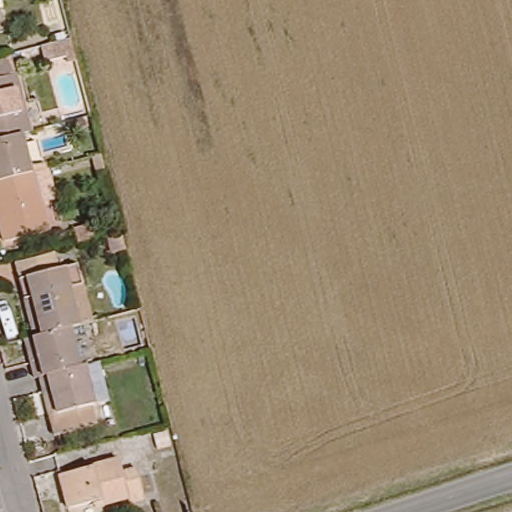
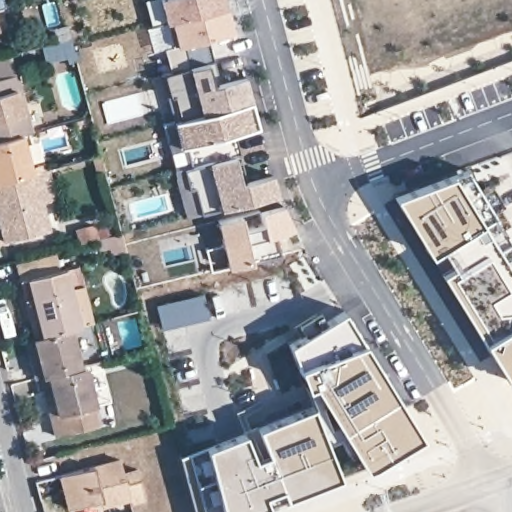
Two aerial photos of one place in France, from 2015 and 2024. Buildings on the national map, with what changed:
new [(224,7),(163,23),(157,0),(222,0),(224,7)]
new [(169,47),(163,23),(224,7),(231,32),(181,45),(186,67),(167,72),(161,49),(169,47)]
unchanged [(68,38),(72,53),(42,60),(38,45),(68,38)]
new [(186,67),(211,61),(216,83),(222,81),(242,76),(248,101),(177,120),(171,94),(166,95),(161,73),(167,72),(186,67)]
unchanged [(34,127),(25,129),(0,135),(0,74),(20,69),(34,127)]
new [(248,101),(253,120),(229,127),(231,133),(236,155),(186,167),(181,145),(176,146),(169,122),(177,120),(248,101)]
unchanged [(34,168),(0,177),(0,135),(25,129),(34,168)]
new [(186,167),(236,155),(242,176),(236,177),(238,183),(269,176),(274,195),(197,215),(190,189),(185,190),(179,169),(186,167)]
unchanged [(0,177),(34,168),(48,165),(55,194),(45,196),(52,225),(8,237),(0,203),(0,177)]
new [(512,245),(512,379),(507,379),(393,195),(466,168),(512,245)]
unchanged [(73,173),(82,170),(85,185),(76,188),(73,173)]
new [(256,208),(282,200),(293,227),(274,234),(279,254),(251,261),(225,267),(215,220),(241,213),(244,223),(259,219),(256,208)]
unchanged [(76,241),(73,229),(90,224),(93,236),(76,241)]
unchanged [(21,269),(75,255),(94,328),(76,332),(38,342),(21,269)]
new [(338,476),(283,497),(279,485),(262,492),(266,504),(245,512),(194,512),(179,456),(206,445),(242,431),(252,457),(266,452),(257,426),(311,405),(305,386),(298,366),(287,342),(343,309),(360,340),(419,433),(363,466),(336,472),(338,476)]
unchanged [(26,345),(38,342),(76,332),(86,373),(43,384),(37,385),(26,345)]
unchanged [(99,427),(57,438),(43,384),(86,373),(90,372),(99,409),(94,410),(99,427)]
demolished [(153,435),(166,432),(169,445),(157,449),(153,435)]
unchanged [(64,472),(98,463),(98,461),(121,455),(124,468),(139,464),(147,493),(134,496),(133,492),(108,498),(107,492),(71,501),(64,472)]

